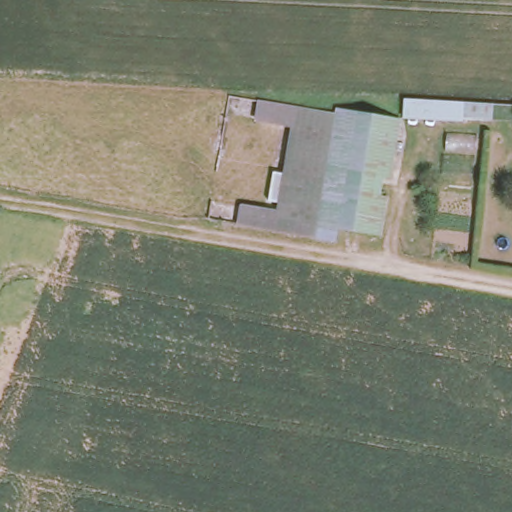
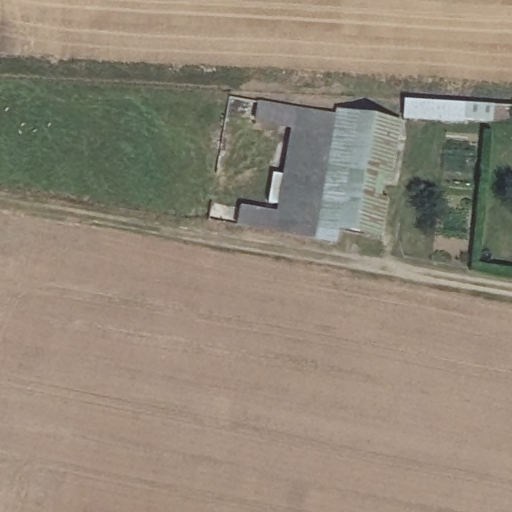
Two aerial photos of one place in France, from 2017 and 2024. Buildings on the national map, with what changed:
unchanged [(388,175),(381,175),(379,189),(386,189),(377,247),(228,228),(235,195),(278,204),(289,122),(254,118),(257,95),(394,117),(388,175)]
unchanged [(403,96),(494,104),(493,120),(401,116),(403,96)]

